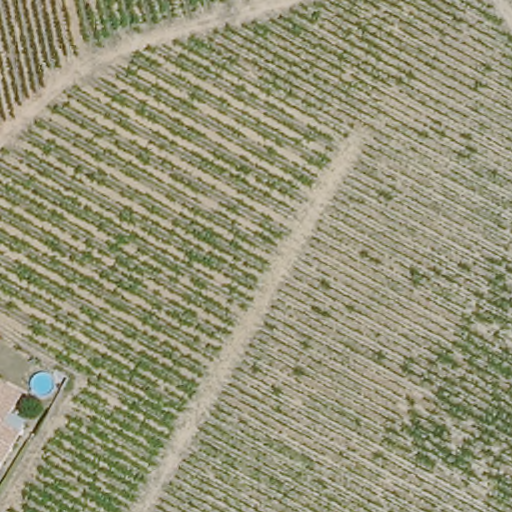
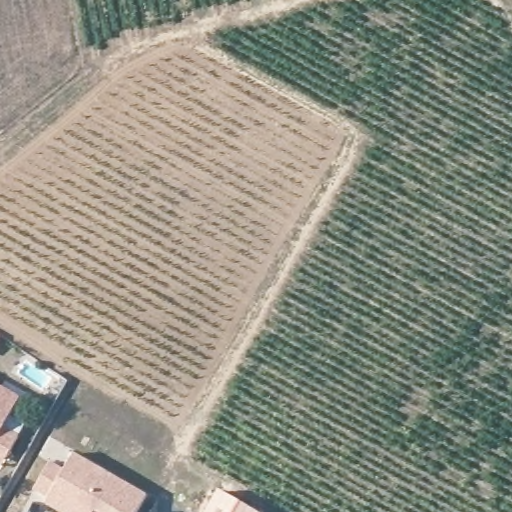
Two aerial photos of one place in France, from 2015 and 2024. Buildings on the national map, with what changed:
unchanged [(10,428),(25,438),(5,472),(0,470),(0,385),(20,395),(10,428)]
new [(50,461),(64,470),(73,453),(146,496),(137,512),(59,512),(44,503),(47,498),(33,490),(50,461)]
new [(250,512),(205,512),(217,492),(250,512)]

